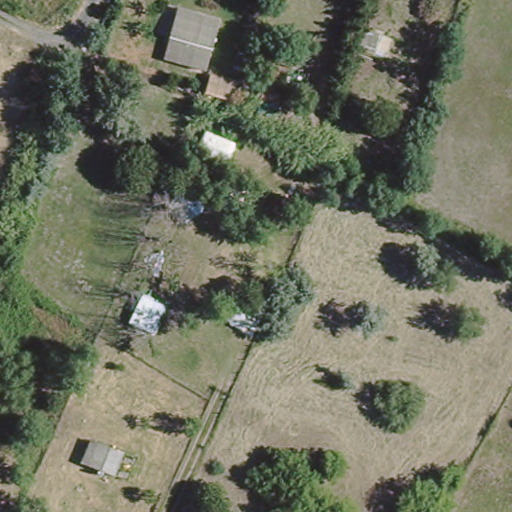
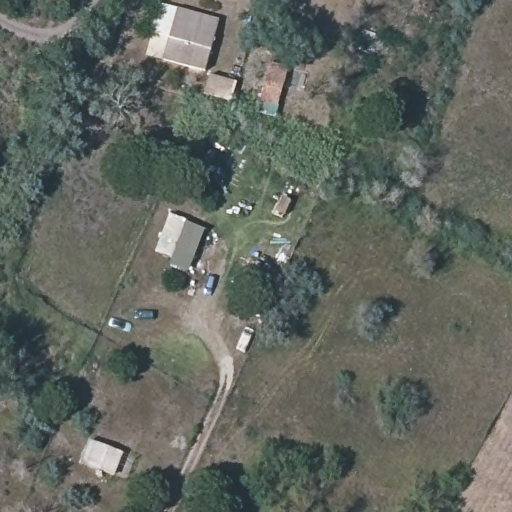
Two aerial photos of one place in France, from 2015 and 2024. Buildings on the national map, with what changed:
unchanged [(202,62),(200,70),(164,60),(170,36),(178,5),(219,16),(210,48),(207,64),(202,62)]
unchanged [(257,102),(261,85),(267,67),(284,73),(278,90),(274,107),(257,102)]
unchanged [(239,80),(233,100),(208,91),(212,73),(239,80)]
new [(155,251),(172,212),(208,227),(189,271),(171,263),(173,259),(155,251)]
unchanged [(113,474),(88,463),(96,443),(121,453),(113,474)]

